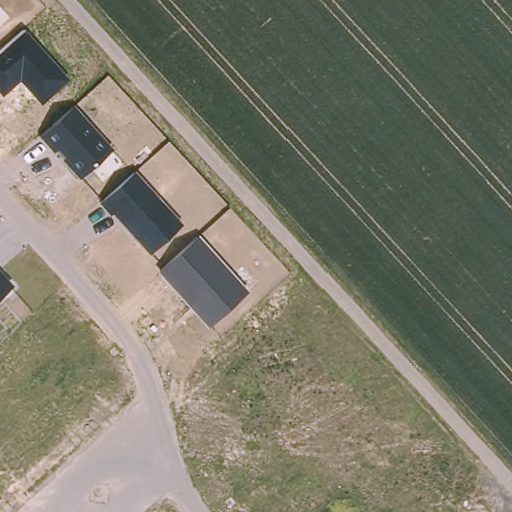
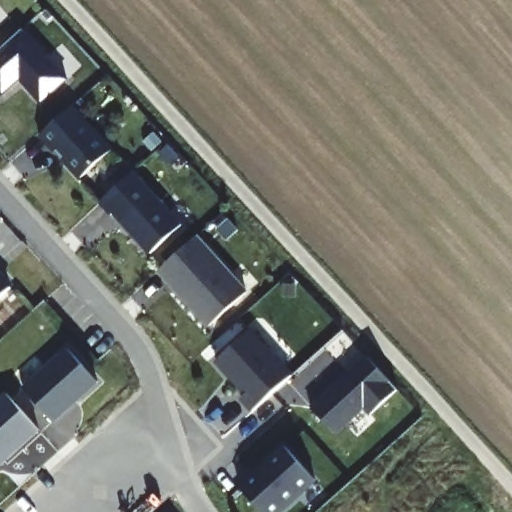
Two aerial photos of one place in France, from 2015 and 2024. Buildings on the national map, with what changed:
unchanged [(66,75),(36,104),(15,79),(0,94),(0,44),(21,25),(66,75)]
unchanged [(58,150),(55,153),(37,132),(72,104),(112,149),(81,175),(58,150)]
unchanged [(146,254),(97,201),(129,170),(179,223),(146,254)]
unchanged [(247,291),(209,326),(159,270),(199,235),(247,291)]
unchanged [(0,296),(0,274),(11,286),(0,296)]
new [(252,412),(241,399),(245,395),(216,362),(249,331),(291,377),(252,412)]
new [(55,424),(23,388),(67,348),(99,384),(55,424)]
new [(396,391),(369,416),(363,410),(334,436),(309,409),(364,357),(396,391)]
new [(6,393),(40,431),(0,467),(0,399),(6,393)]
new [(276,512),(258,512),(236,487),(283,447),(312,481),(276,512)]

